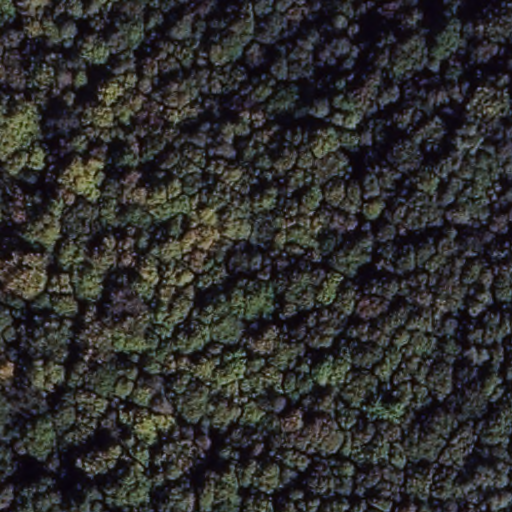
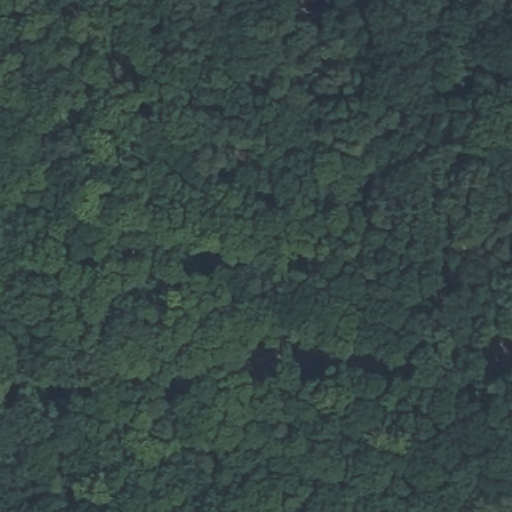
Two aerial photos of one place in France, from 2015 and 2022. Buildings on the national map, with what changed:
[]

